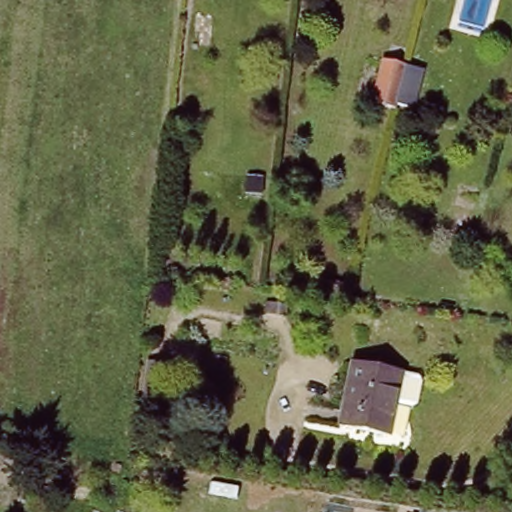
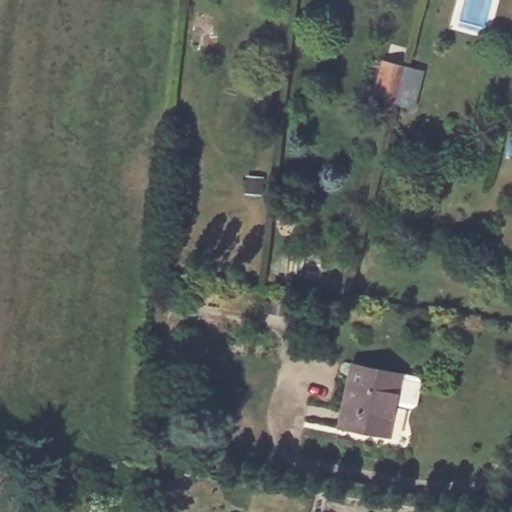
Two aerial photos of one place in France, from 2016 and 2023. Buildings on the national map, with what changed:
unchanged [(407,106),(390,101),(388,106),(367,100),(378,56),(400,63),(417,68),(407,106)]
unchanged [(341,422),(355,360),(420,376),(422,382),(418,401),(412,405),(397,402),(390,432),(341,422)]

